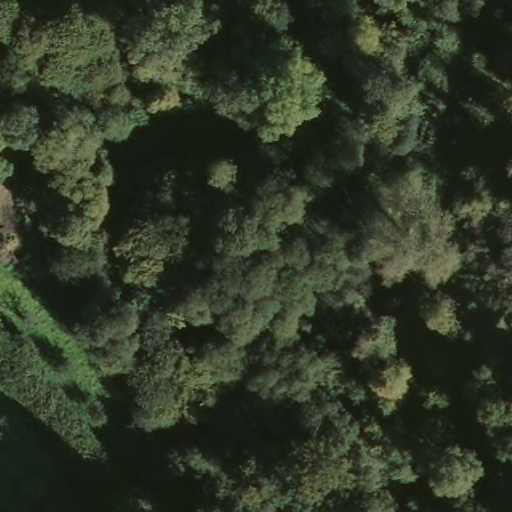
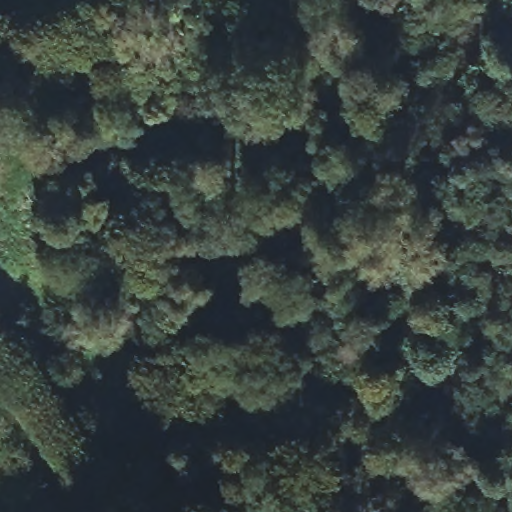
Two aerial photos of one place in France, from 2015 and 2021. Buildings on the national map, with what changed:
[]

